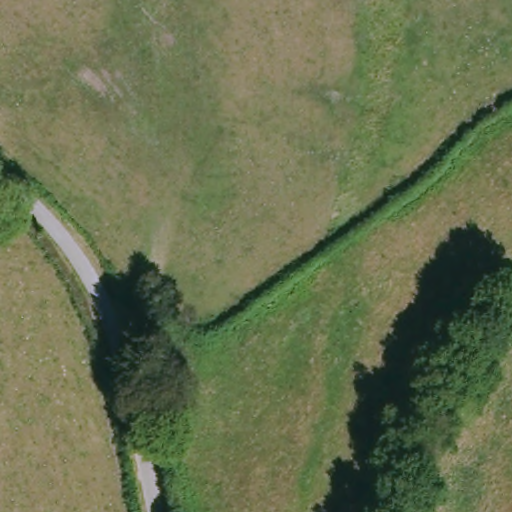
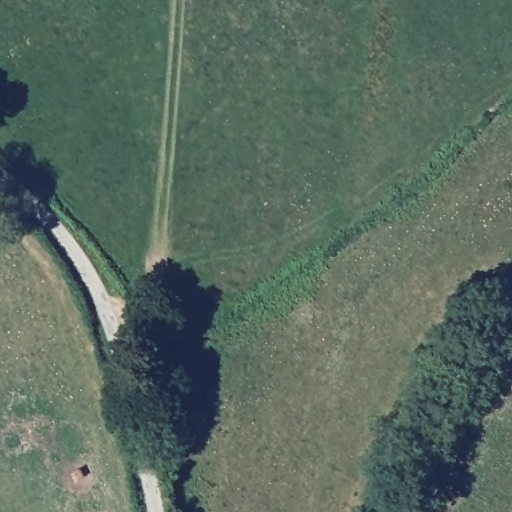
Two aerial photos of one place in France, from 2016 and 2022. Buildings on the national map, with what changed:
[]

